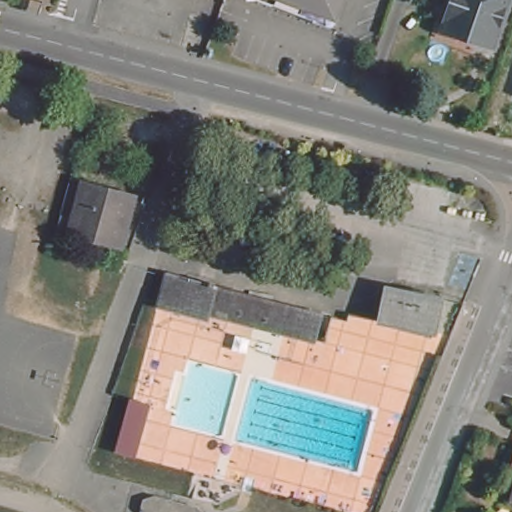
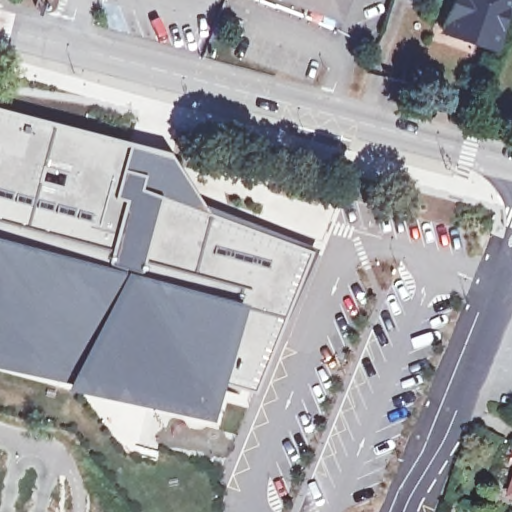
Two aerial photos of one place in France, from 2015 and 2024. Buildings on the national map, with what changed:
unchanged [(331,28),(259,0),(291,0),(335,17),(331,28)]
unchanged [(291,0),(342,0),(335,17),(291,0)]
unchanged [(450,18),(444,11),(448,0),(509,0),(492,49),(444,31),(450,18)]
new [(0,360),(0,109),(127,142),(120,168),(143,174),(140,188),(209,212),(312,251),(255,394),(215,383),(210,403),(215,404),(212,417),(202,414),(87,383),(70,379),(0,360)]
new [(127,142),(172,154),(209,212),(140,188),(143,174),(120,168),(127,142)]
demolished [(131,189),(119,231),(75,220),(71,234),(55,229),(62,205),(77,209),(87,177),(131,189)]
demolished [(249,299),(314,317),(306,342),(213,315),(203,313),(201,320),(179,314),(188,284),(249,299)]
demolished [(440,299),(434,332),(381,322),(387,289),(440,299)]
demolished [(152,408),(140,463),(115,457),(129,403),(152,408)]
unchanged [(510,500),(512,494),(512,501),(510,500)]
demolished [(155,502),(190,512),(140,512),(143,504),(155,502)]

